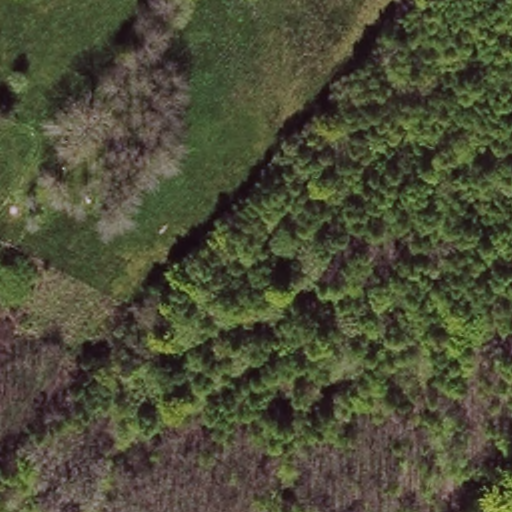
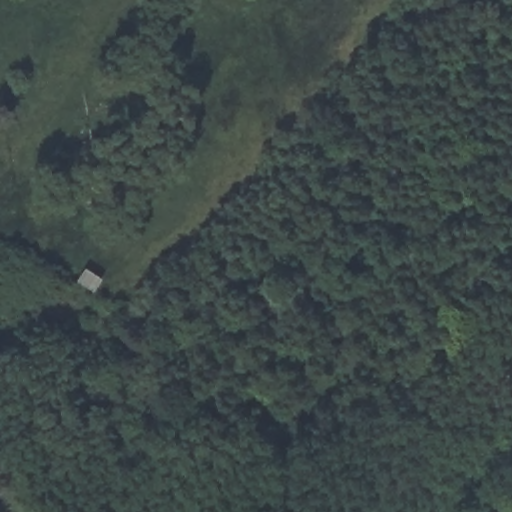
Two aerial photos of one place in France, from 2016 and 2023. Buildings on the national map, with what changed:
[]

